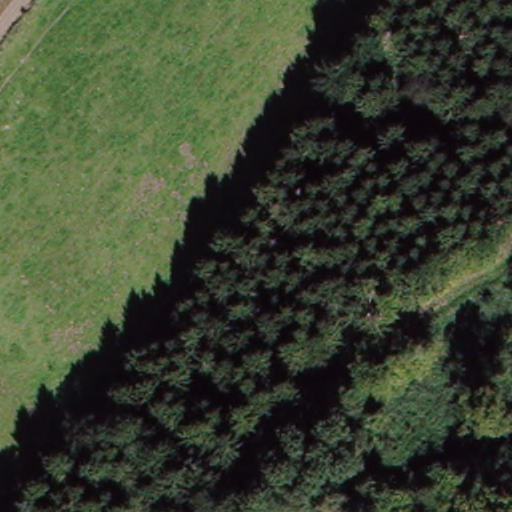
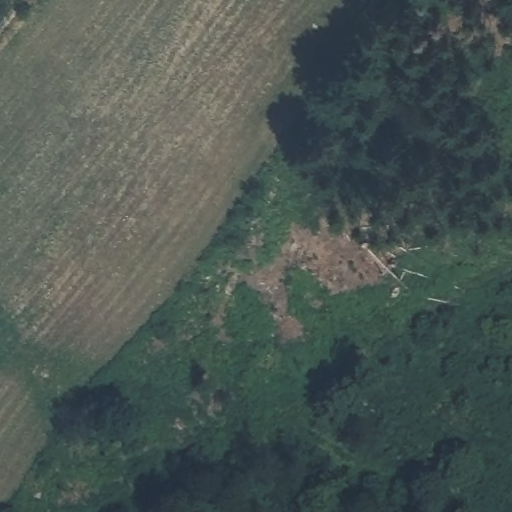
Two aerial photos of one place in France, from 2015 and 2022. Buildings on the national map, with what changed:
[]

